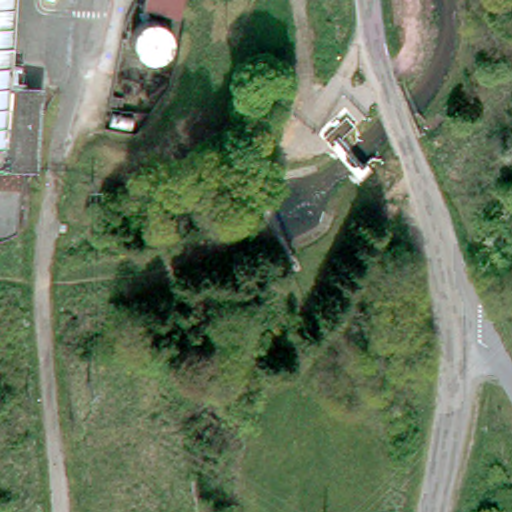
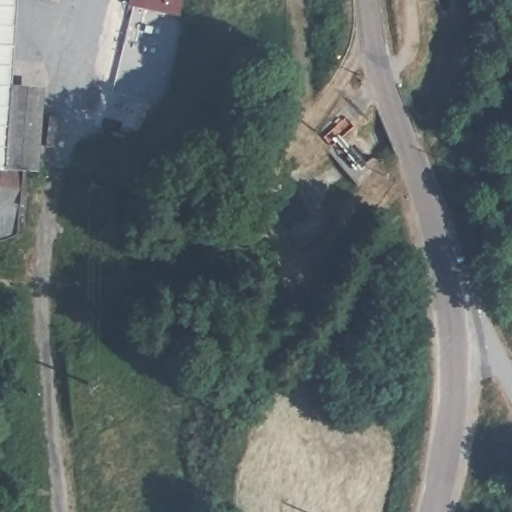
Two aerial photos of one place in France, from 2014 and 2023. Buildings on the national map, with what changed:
unchanged [(13,86),(8,167),(12,167),(28,168),(23,234),(9,240),(0,241),(0,0),(18,0),(13,86)]
unchanged [(151,5),(153,0),(186,0),(183,12),(151,5)]
unchanged [(28,168),(12,167),(8,167),(13,86),(44,89),(39,169),(28,168)]

